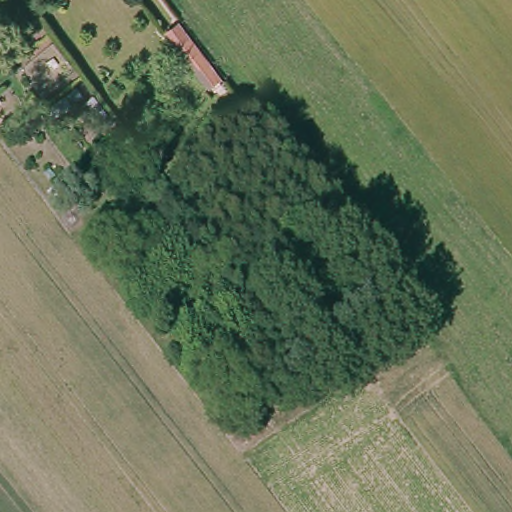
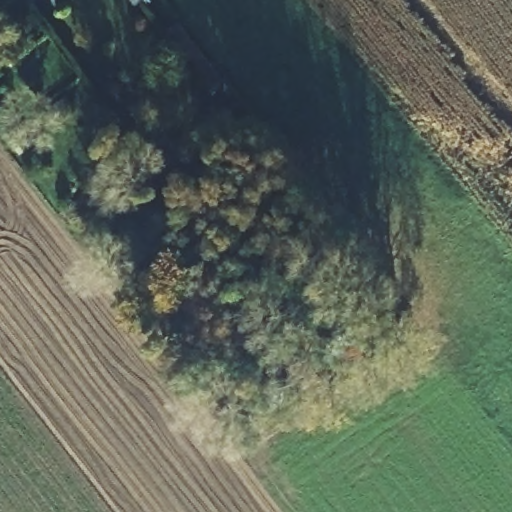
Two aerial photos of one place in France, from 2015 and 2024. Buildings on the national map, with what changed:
unchanged [(177,24),(188,36),(177,46),(167,33),(177,24)]

